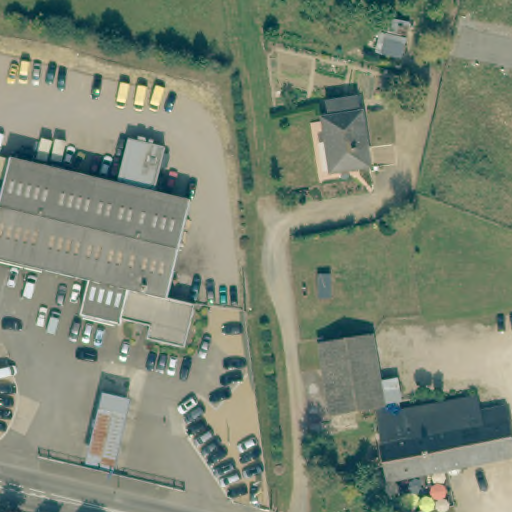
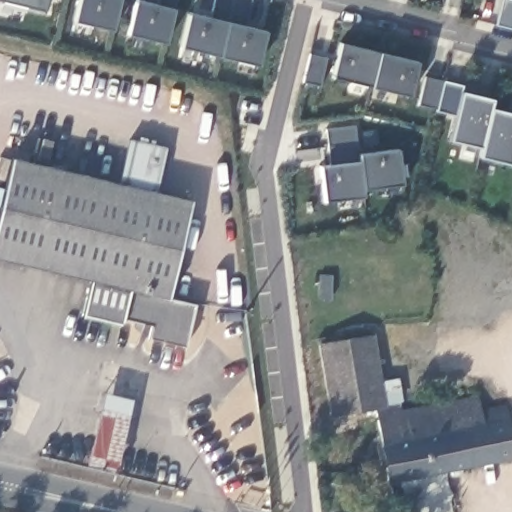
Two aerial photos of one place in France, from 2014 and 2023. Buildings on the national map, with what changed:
new [(0,0),(47,0),(44,11),(0,0)]
new [(112,29),(75,20),(79,0),(119,0),(112,29)]
new [(165,43),(126,33),(135,0),(140,0),(156,4),(158,0),(175,0),(174,9),(165,43)]
new [(256,65),(180,46),(188,12),(210,17),(214,0),(251,0),(245,27),(265,32),(256,65)]
unchanged [(502,0),(512,0),(512,30),(495,26),(502,0)]
new [(417,62),(409,95),(370,86),(332,76),(340,43),(380,53),(417,62)]
new [(463,85),(465,92),(492,99),(490,108),(512,113),(512,155),(510,164),(478,157),(480,147),(448,140),(455,116),(435,112),(443,80),(463,85)]
demolished [(363,115),(369,171),(332,175),(326,117),(363,115)]
new [(397,150),(401,184),(361,189),(362,196),(325,201),(321,166),(328,165),(326,129),(355,126),(358,153),(397,150)]
unchanged [(163,299),(190,307),(179,351),(140,340),(144,324),(116,317),(115,324),(75,313),(83,282),(0,262),(0,186),(7,158),(114,185),(125,141),(161,150),(150,194),(187,203),(163,299)]
unchanged [(395,406),(380,408),(380,409),(377,410),(370,410),(370,411),(326,417),(315,341),(320,340),(321,347),(371,340),(377,387),(392,385),(395,406)]
unchanged [(137,392),(118,464),(91,456),(110,384),(137,392)]
unchanged [(377,410),(380,409),(395,407),(396,417),(473,407),(475,415),(475,423),(500,419),(507,468),(380,485),(378,470),(373,471),(370,446),(375,445),(370,411),(370,410),(377,410)]

